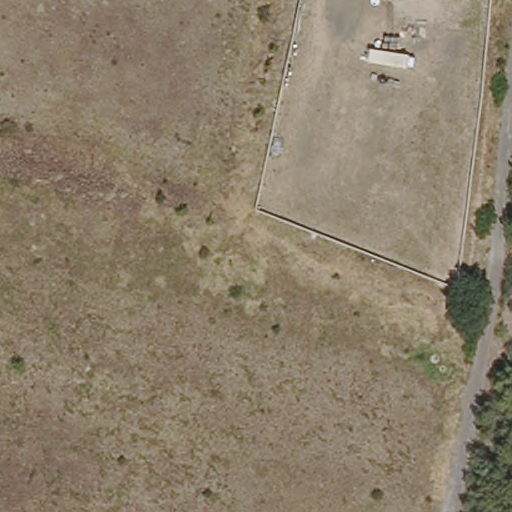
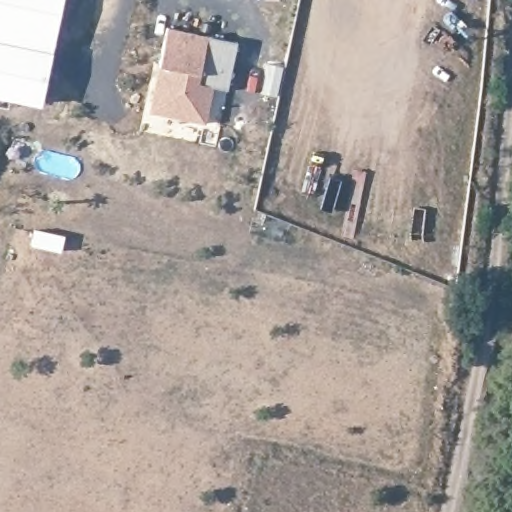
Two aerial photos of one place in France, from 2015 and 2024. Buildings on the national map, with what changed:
new [(41,106),(0,96),(0,0),(63,0),(41,106)]
new [(239,42),(229,89),(214,86),(206,122),(150,111),(168,28),(239,42)]

